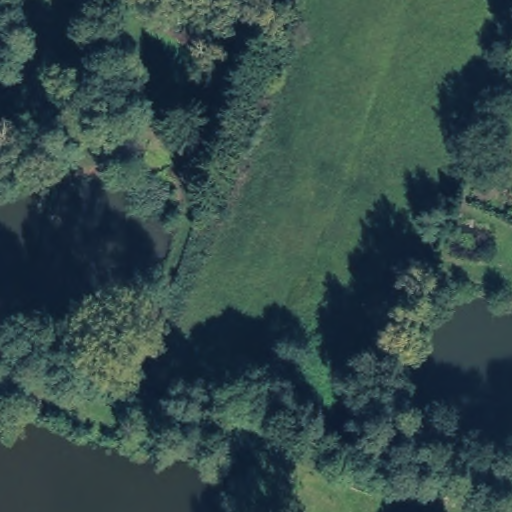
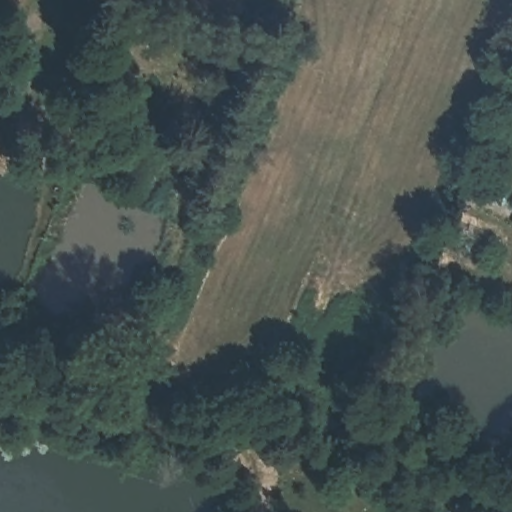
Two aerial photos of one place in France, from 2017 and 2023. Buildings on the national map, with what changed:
unchanged [(230,48),(222,68),(194,58),(202,38),(230,48)]

